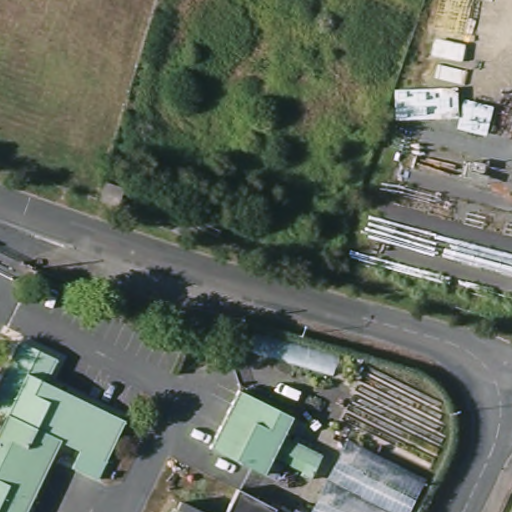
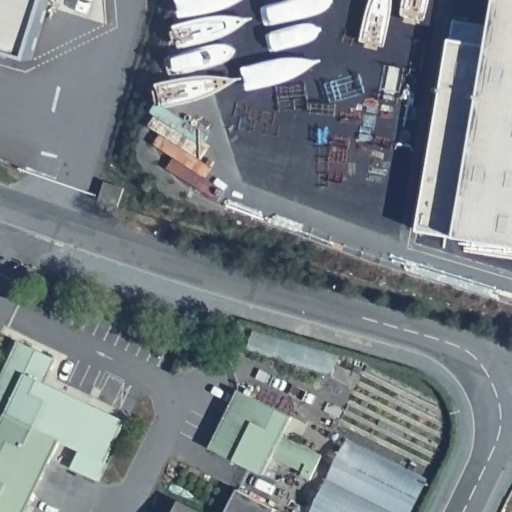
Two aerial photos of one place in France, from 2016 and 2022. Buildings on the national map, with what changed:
new [(30,57),(0,49),(0,0),(47,0),(30,57)]
new [(451,39),(454,20),(495,25),(499,0),(512,0),(512,245),(459,237),(420,230),(451,39)]
unchanged [(105,184),(122,189),(116,207),(100,201),(105,184)]
unchanged [(0,412),(0,380),(19,342),(56,360),(53,369),(46,382),(126,421),(106,463),(76,450),(61,442),(27,512),(0,512),(0,427),(6,415),(0,412)]
unchanged [(293,418),(284,436),(322,456),(311,480),(301,475),(306,465),(276,450),(264,475),(211,449),(239,392),(293,418)]
unchanged [(412,512),(312,512),(348,441),(427,481),(412,512)]
unchanged [(209,512),(173,512),(180,498),(209,512)]

